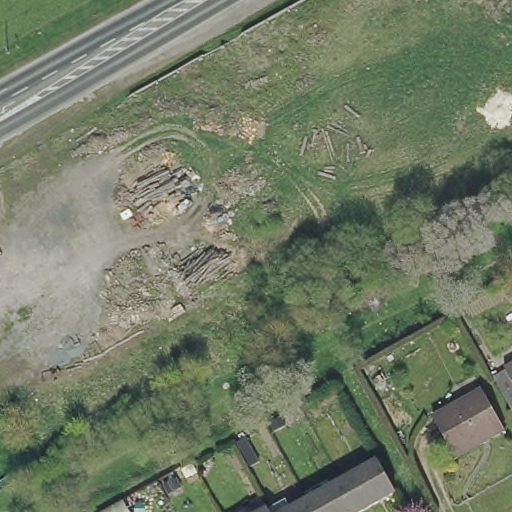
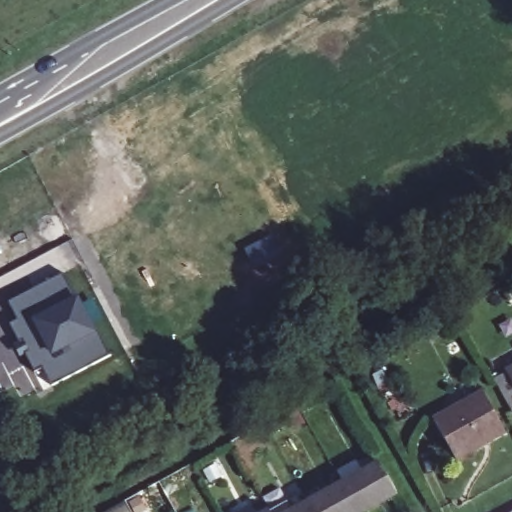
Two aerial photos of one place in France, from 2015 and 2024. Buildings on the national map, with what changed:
new [(50,385),(42,369),(34,373),(26,356),(20,360),(13,345),(18,341),(9,325),(17,321),(8,303),(60,275),(73,298),(78,296),(96,333),(109,355),(50,385)]
unchanged [(504,395),(497,382),(512,375),(512,408),(504,395)]
unchanged [(479,387),(503,427),(454,456),(431,415),(479,387)]
unchanged [(370,484),(366,477),(381,469),(399,503),(384,512),(360,512),(351,495),(370,484)]
unchanged [(347,489),(351,495),(360,512),(314,512),(312,509),(347,489)]
unchanged [(286,505),(289,511),(307,500),(312,509),(314,512),(272,512),(286,505)]

